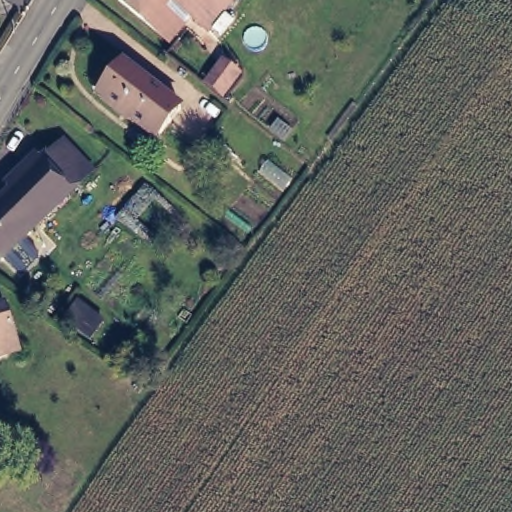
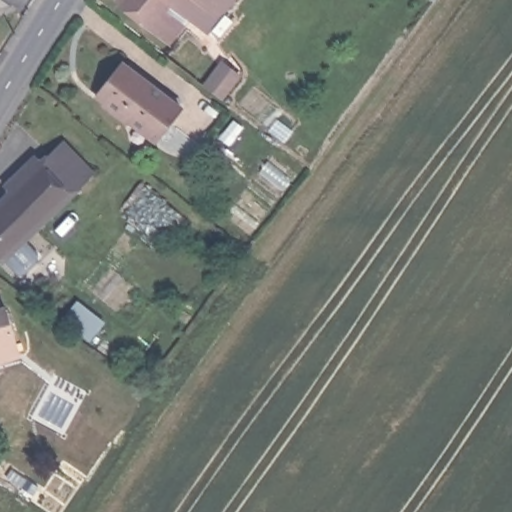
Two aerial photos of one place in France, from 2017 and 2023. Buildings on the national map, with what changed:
unchanged [(185,0),(180,6),(173,1),(164,12),(179,24),(165,43),(111,0),(185,0)]
unchanged [(186,17),(179,24),(164,12),(173,1),(180,6),(185,0),(224,0),(201,29),(186,17)]
unchanged [(156,145),(128,119),(111,105),(103,98),(128,67),(136,73),(153,86),(181,113),(156,145)]
unchanged [(233,79),(221,97),(206,86),(221,68),(233,79)]
unchanged [(0,206),(67,143),(95,173),(19,245),(26,251),(19,257),(14,252),(4,261),(0,256),(0,206)]
unchanged [(0,359),(0,311),(2,310),(15,354),(0,359)]

